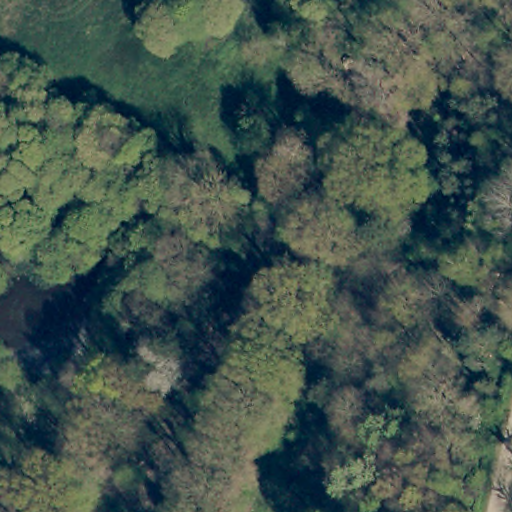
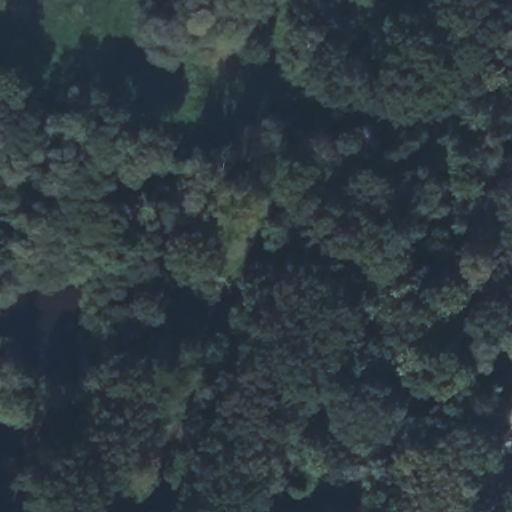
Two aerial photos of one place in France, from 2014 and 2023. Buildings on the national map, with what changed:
[]

